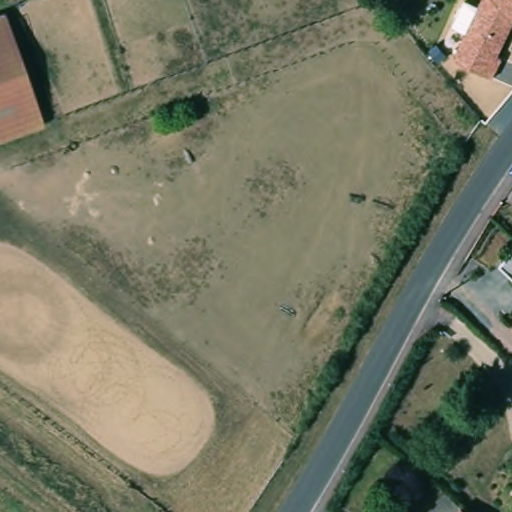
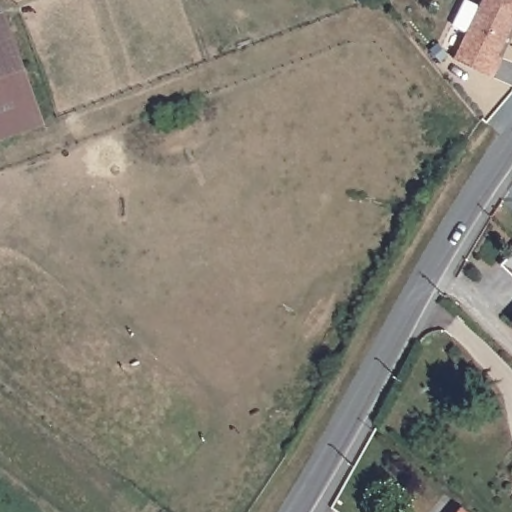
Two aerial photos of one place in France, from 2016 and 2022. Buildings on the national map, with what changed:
unchanged [(497,56),(504,59),(494,81),(454,62),(466,38),(450,30),(463,1),(479,8),(483,0),(512,0),(512,23),(497,56)]
unchanged [(40,116),(0,132),(0,15),(1,15),(40,116)]
unchanged [(511,320),(512,318),(512,321),(511,320)]
unchanged [(461,509),(465,512),(457,512),(461,509)]

